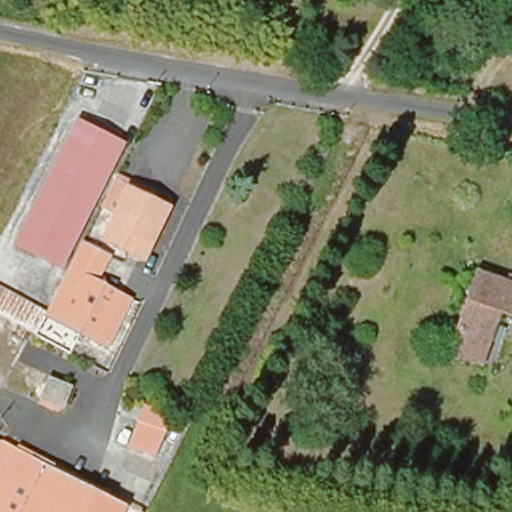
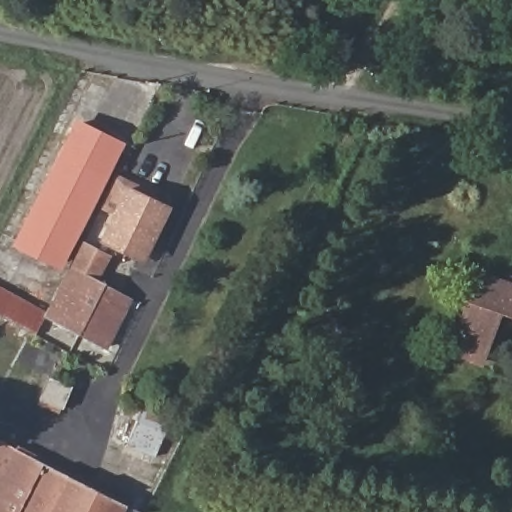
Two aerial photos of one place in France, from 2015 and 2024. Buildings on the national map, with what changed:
unchanged [(463,88),(426,75),(430,63),(467,75),(463,88)]
unchanged [(74,247),(72,250),(24,223),(75,126),(123,151),(74,247)]
unchanged [(127,188),(132,179),(157,191),(152,200),(170,209),(145,261),(101,242),(127,188)]
unchanged [(72,250),(74,247),(96,259),(85,282),(124,303),(99,347),(83,339),(88,330),(44,307),(72,250)]
unchanged [(452,351),(443,348),(447,335),(470,270),(485,275),(512,283),(512,314),(500,320),(490,348),(485,362),(452,351)]
unchanged [(30,335),(0,319),(0,290),(42,313),(30,335)]
unchanged [(61,410),(40,403),(48,384),(67,392),(61,410)]
unchanged [(168,422),(155,454),(124,441),(136,412),(168,422)]
unchanged [(0,481),(16,450),(55,470),(33,512),(0,512),(0,481)]
unchanged [(55,470),(125,506),(121,512),(33,512),(55,470)]

